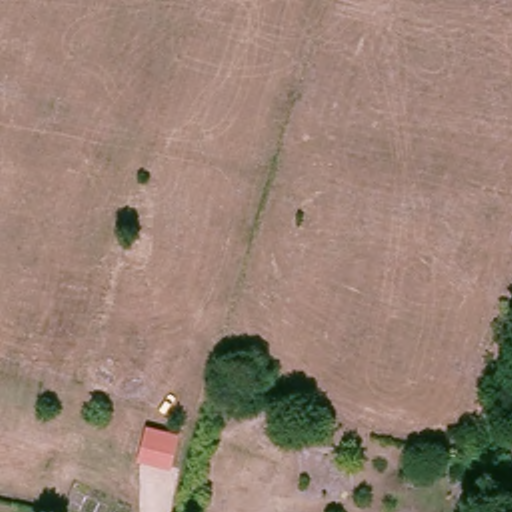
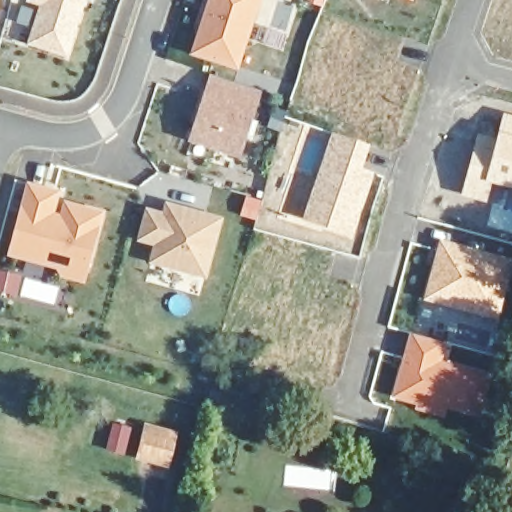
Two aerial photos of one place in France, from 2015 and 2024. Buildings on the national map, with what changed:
new [(39,6),(26,2),(27,0),(85,0),(66,59),(28,45),(39,6)]
new [(192,55),(209,0),(260,0),(239,70),(192,55)]
new [(414,3),(408,0),(415,0),(414,3)]
new [(210,75),(261,92),(240,158),(189,142),(210,75)]
new [(492,185),(487,204),(462,197),(478,135),(497,140),(504,115),(512,117),(512,190),(492,185)]
new [(363,170),(375,174),(353,238),(303,221),(333,133),(371,146),(363,170)]
new [(7,256),(28,183),(60,192),(56,214),(61,215),(64,201),(104,212),(85,284),(61,278),(56,269),(7,256)]
new [(150,264),(154,246),(138,242),(146,210),(164,212),(166,202),(224,218),(207,279),(150,264)]
new [(441,241),(512,260),(512,272),(499,321),(424,301),(441,241)]
new [(409,334),(429,340),(444,360),(488,372),(475,417),(448,410),(446,419),(416,411),(417,406),(392,399),(409,334)]
new [(136,460),(146,424),(180,433),(171,469),(136,460)]

